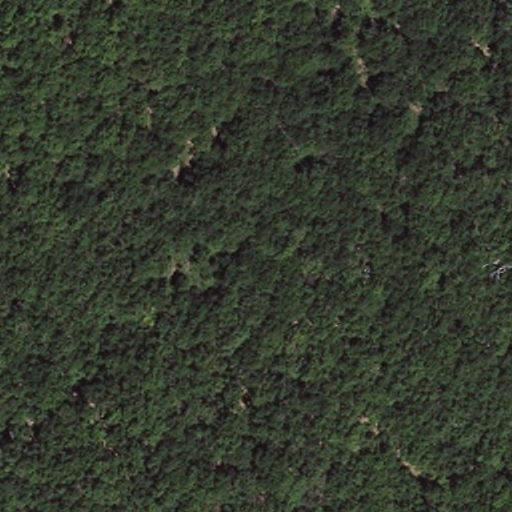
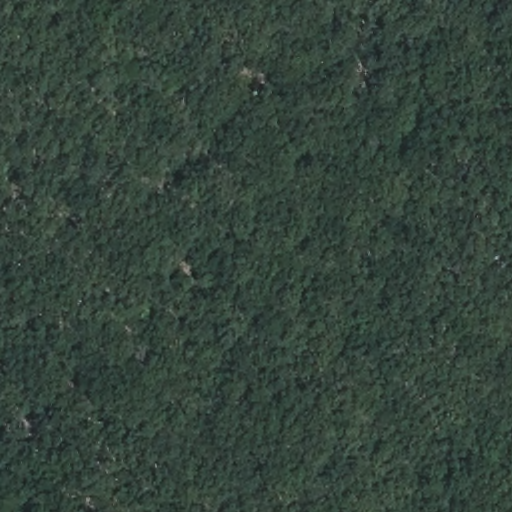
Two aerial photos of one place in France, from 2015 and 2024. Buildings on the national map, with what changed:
[]

